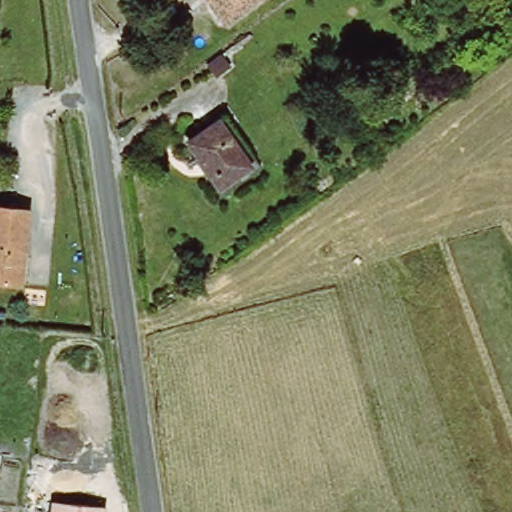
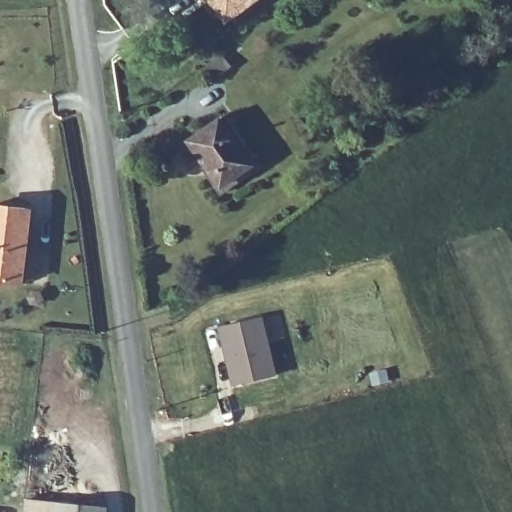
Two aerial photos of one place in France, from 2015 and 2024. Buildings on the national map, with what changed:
unchanged [(201,0),(257,0),(221,26),(201,0)]
demolished [(36,56),(11,54),(0,53),(0,31),(14,31),(36,34),(36,56)]
unchanged [(255,164),(218,193),(181,143),(218,115),(255,164)]
unchanged [(17,283),(0,281),(0,209),(24,212),(17,283)]
new [(258,320),(273,377),(231,388),(216,330),(258,320)]
unchanged [(106,506),(106,512),(25,512),(26,500),(106,506)]

